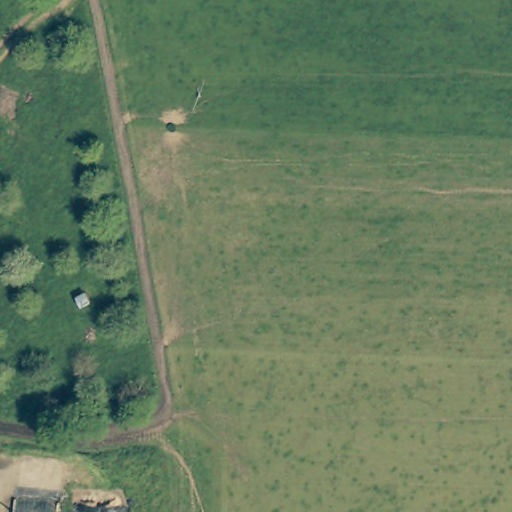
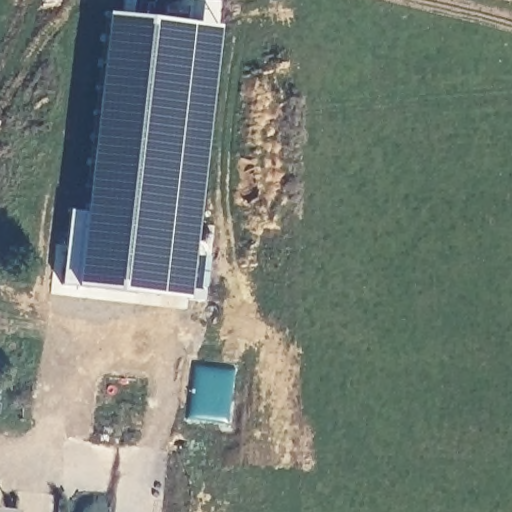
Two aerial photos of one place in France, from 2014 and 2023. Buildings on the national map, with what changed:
new [(70,209),(85,211),(107,12),(219,25),(187,299),(61,285),(70,209)]
unchanged [(14,512),(0,512),(0,507),(14,508),(14,512)]

